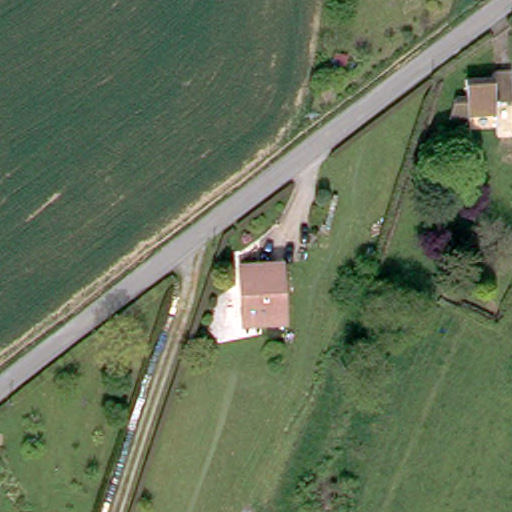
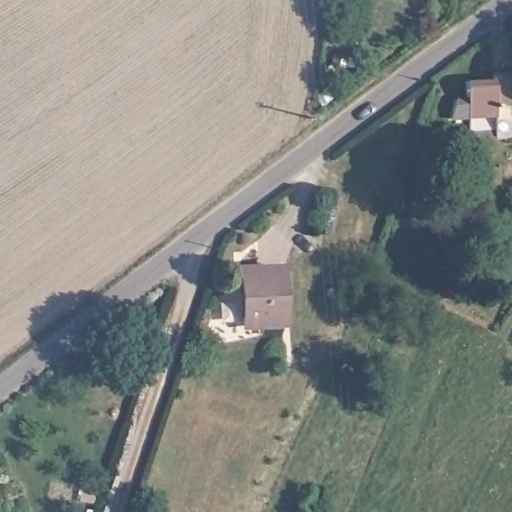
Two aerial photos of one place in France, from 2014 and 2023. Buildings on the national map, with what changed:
unchanged [(448,88),(477,88),(477,81),(494,81),(494,111),(477,112),(477,123),(449,124),(429,126),(434,106),(448,105),(448,88)]
unchanged [(328,86),(326,99),(301,96),(303,83),(328,86)]
unchanged [(240,267),(276,268),(275,326),(239,326),(240,267)]

